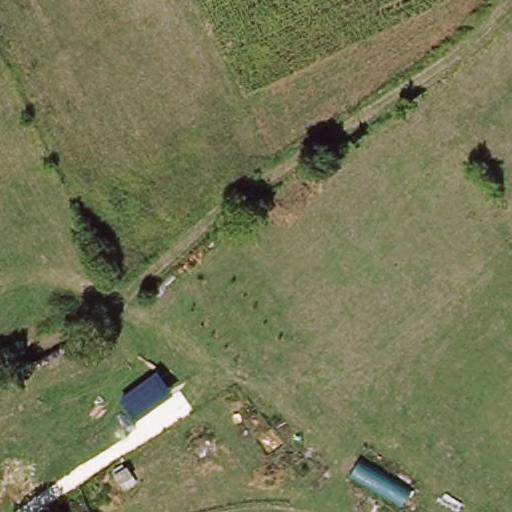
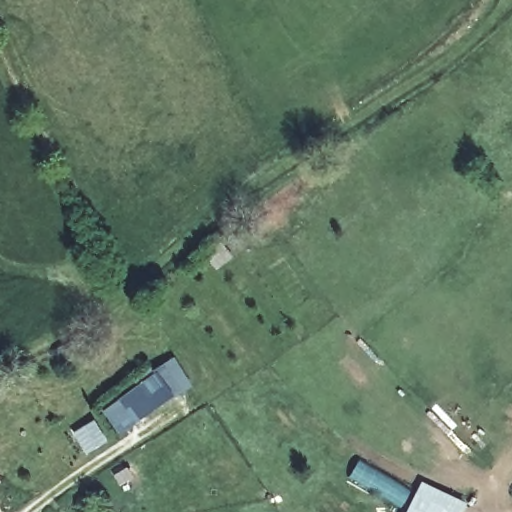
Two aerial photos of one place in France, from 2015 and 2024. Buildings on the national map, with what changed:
unchanged [(191,383),(117,430),(103,410),(175,357),(191,383)]
unchanged [(350,478),(362,457),(415,487),(402,509),(350,478)]
new [(406,512),(421,481),(466,502),(461,512),(406,512)]

